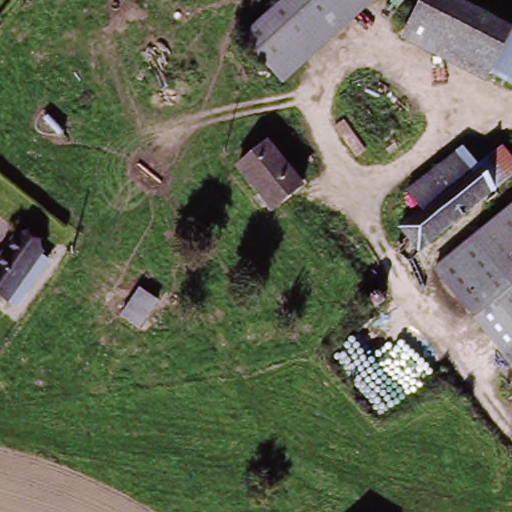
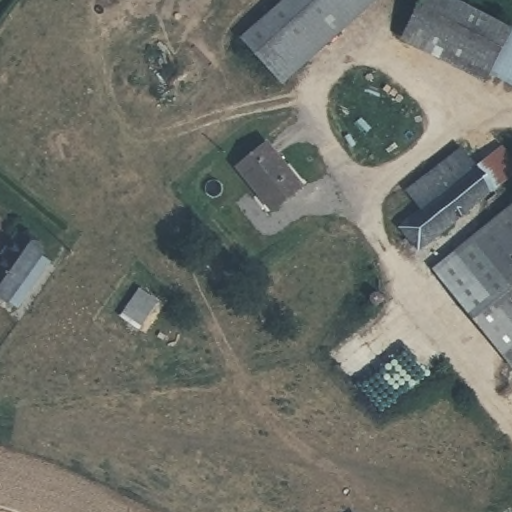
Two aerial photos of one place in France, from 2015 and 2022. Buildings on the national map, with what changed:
unchanged [(241,38),(283,0),(379,0),(285,87),(241,38)]
unchanged [(430,0),(443,0),(512,38),(512,87),(412,32),(430,0)]
unchanged [(268,204),(235,168),(263,142),(296,179),(268,204)]
unchanged [(396,229),(420,209),(471,166),(498,144),(512,161),(512,176),(418,255),(396,229)]
unchanged [(404,190),(455,147),(471,166),(420,209),(404,190)]
unchanged [(433,272),(512,207),(512,366),(433,272)]
unchanged [(0,286),(0,260),(19,235),(41,252),(10,293),(0,286)]
unchanged [(122,318),(138,295),(154,307),(138,330),(122,318)]

